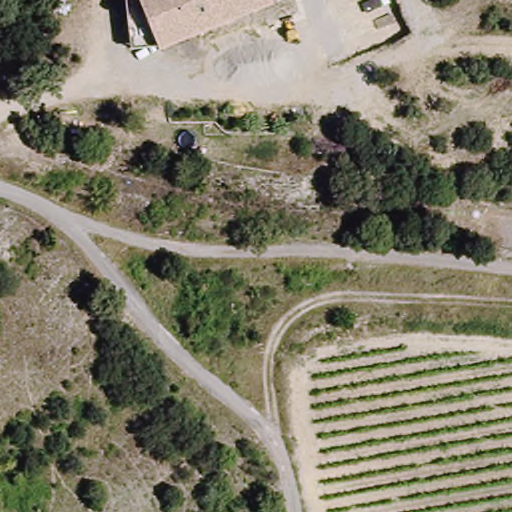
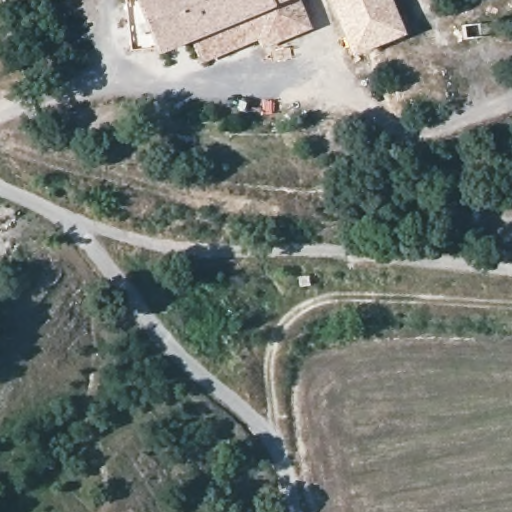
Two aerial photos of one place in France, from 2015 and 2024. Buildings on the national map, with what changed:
unchanged [(126,1),(129,0),(138,0),(158,45),(132,49),(126,1)]
unchanged [(274,3),(243,16),(162,53),(138,0),(273,0),(274,3)]
new [(243,16),(274,3),(273,0),(301,0),(311,27),(263,49),(258,40),(200,65),(193,39),(243,16)]
new [(400,33),(355,53),(332,0),(385,0),(400,33)]

